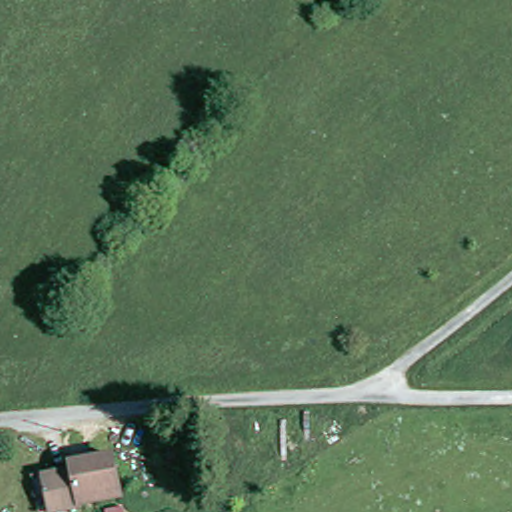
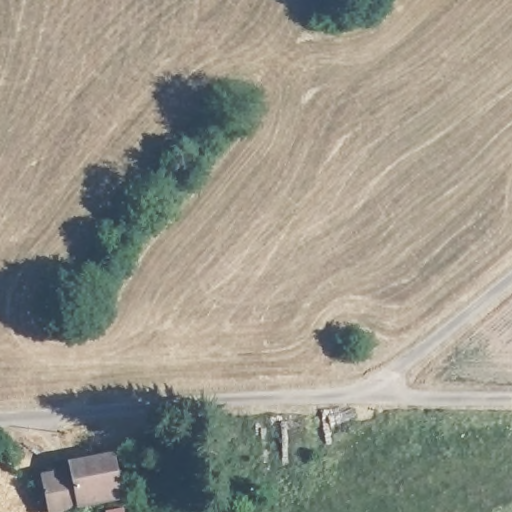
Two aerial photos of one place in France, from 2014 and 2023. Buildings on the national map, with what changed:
unchanged [(31,481),(42,480),(43,486),(73,483),(72,474),(115,469),(121,510),(105,512),(36,512),(31,481)]

